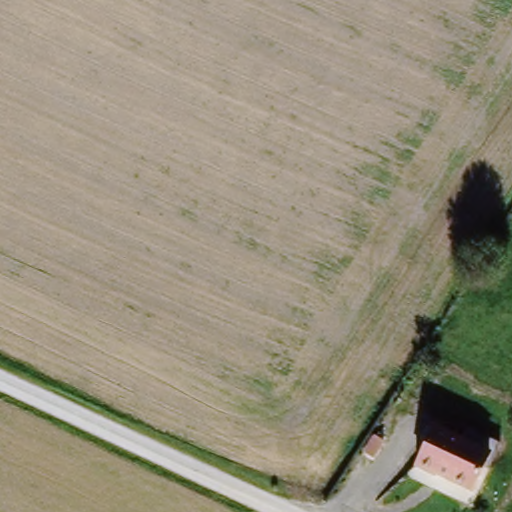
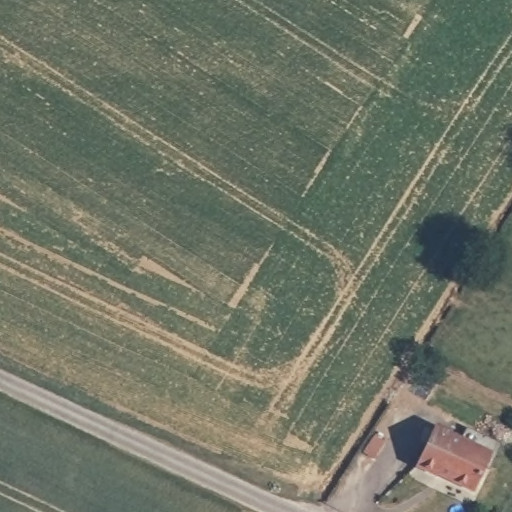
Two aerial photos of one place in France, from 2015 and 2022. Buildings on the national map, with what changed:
unchanged [(442,470),(440,473),(422,464),(439,426),(495,452),(478,488),(442,470)]
unchanged [(365,457),(374,442),(383,447),(373,463),(365,457)]

